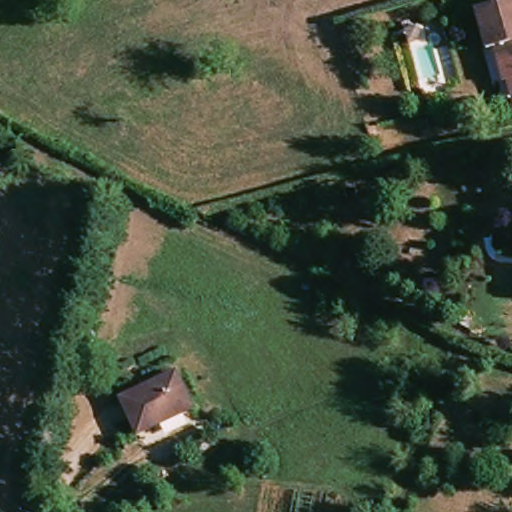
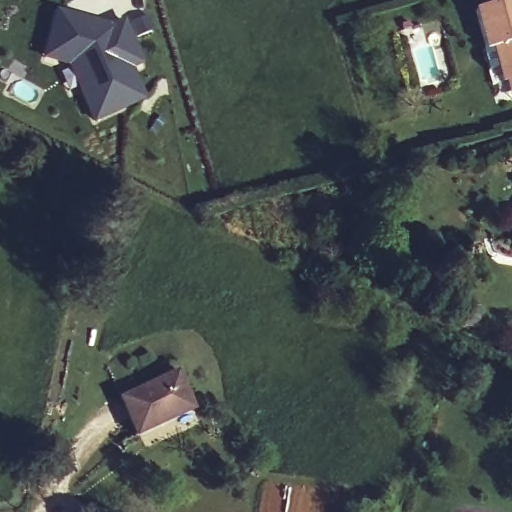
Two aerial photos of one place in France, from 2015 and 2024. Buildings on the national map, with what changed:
new [(130,105),(95,120),(81,90),(84,85),(75,67),(64,64),(44,59),(48,44),(57,13),(88,21),(86,29),(100,32),(124,21),(142,63),(131,68),(145,98),(130,105)]
unchanged [(487,67),(492,61),(482,21),(512,14),(512,90),(497,94),(487,67)]
unchanged [(192,415),(137,438),(122,403),(177,379),(192,415)]

